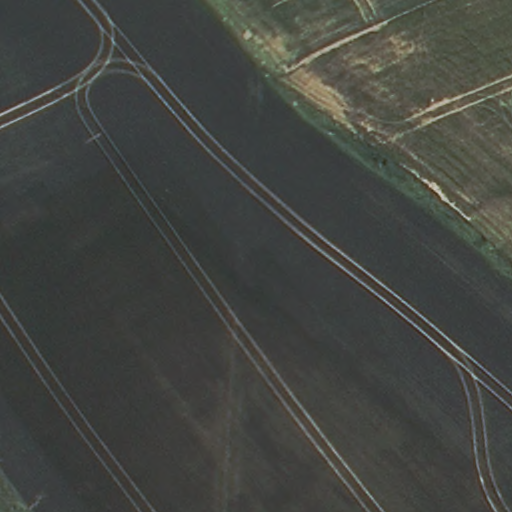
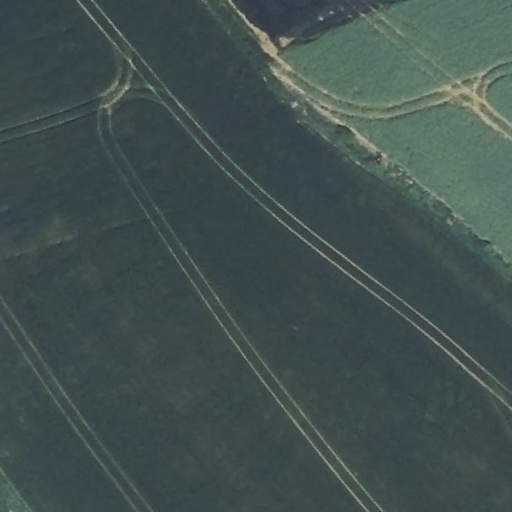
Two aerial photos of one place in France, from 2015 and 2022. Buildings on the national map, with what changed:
[]

